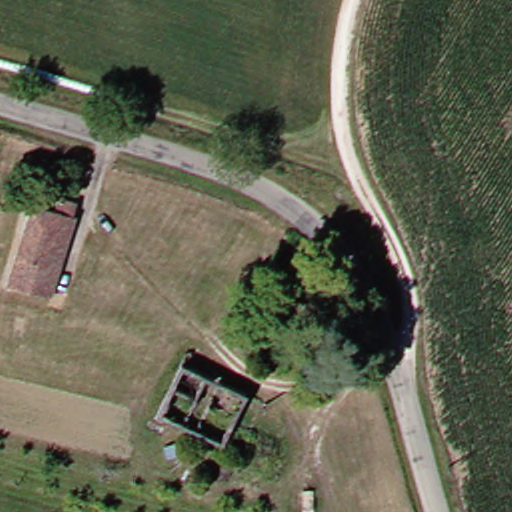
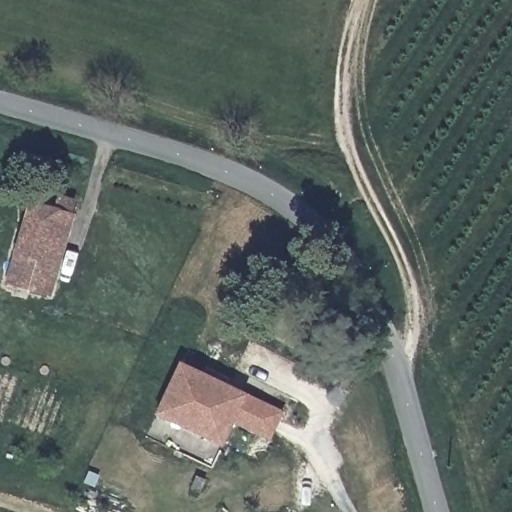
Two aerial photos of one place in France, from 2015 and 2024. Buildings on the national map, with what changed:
unchanged [(18,205),(42,210),(46,196),(63,200),(59,217),(64,218),(52,266),(45,294),(0,282),(0,276),(18,205)]
new [(245,394),(234,420),(223,446),(156,415),(179,364),(245,394)]
new [(234,420),(245,394),(283,413),(271,438),(234,420)]
unchanged [(187,485),(192,473),(202,479),(197,489),(187,485)]

